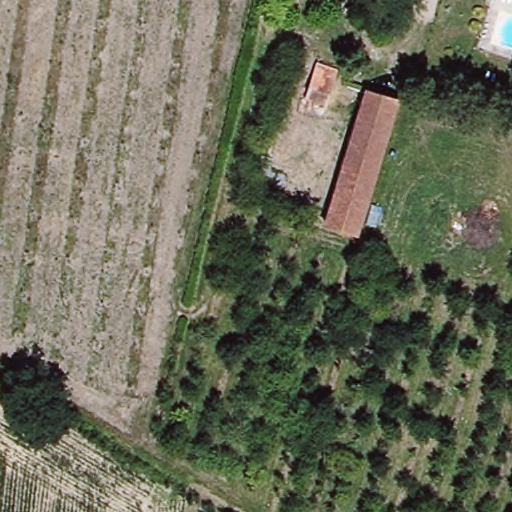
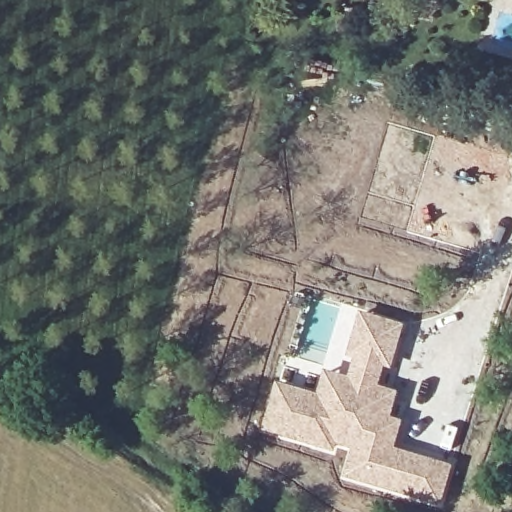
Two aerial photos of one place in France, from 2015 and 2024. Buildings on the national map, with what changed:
unchanged [(319,226),(358,96),(393,108),(353,236),(319,226)]
new [(276,380),(315,392),(323,368),(345,373),(350,362),(343,360),(358,310),(405,324),(391,370),(385,369),(380,384),(399,390),(392,416),(404,420),(396,447),(454,464),(441,508),(340,479),(348,451),(338,448),(335,455),(260,429),(276,380)]

